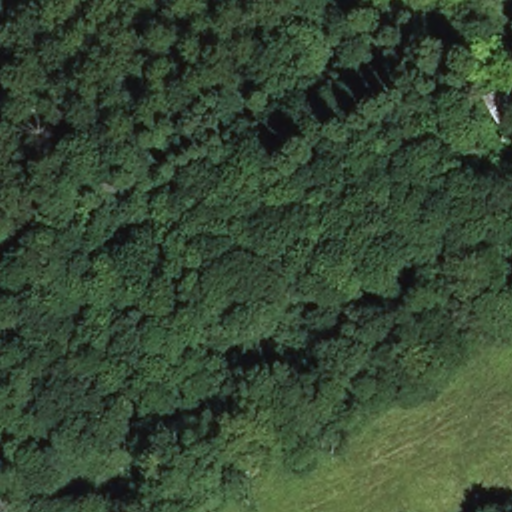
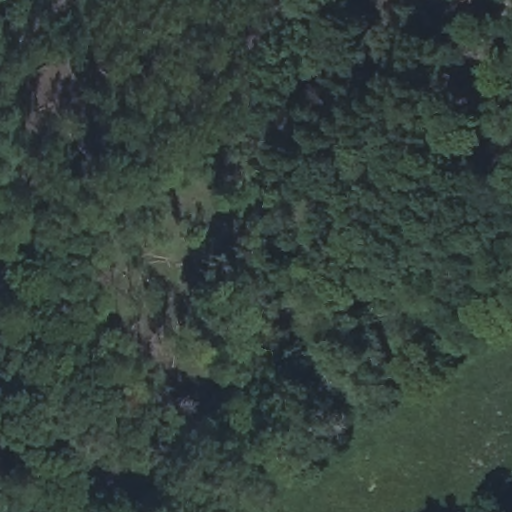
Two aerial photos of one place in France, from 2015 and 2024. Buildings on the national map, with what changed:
unchanged [(491,96),(512,83),(512,114),(504,119),(491,96)]

